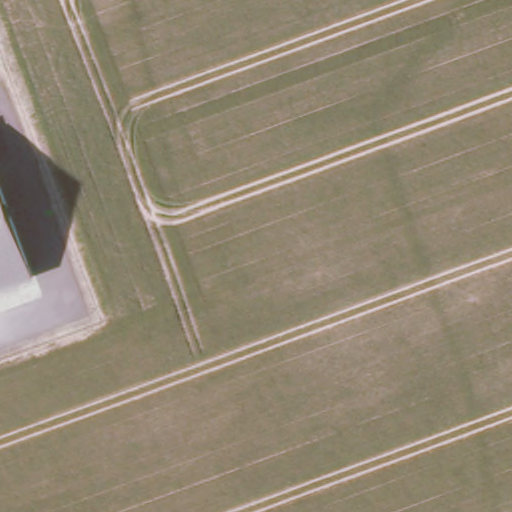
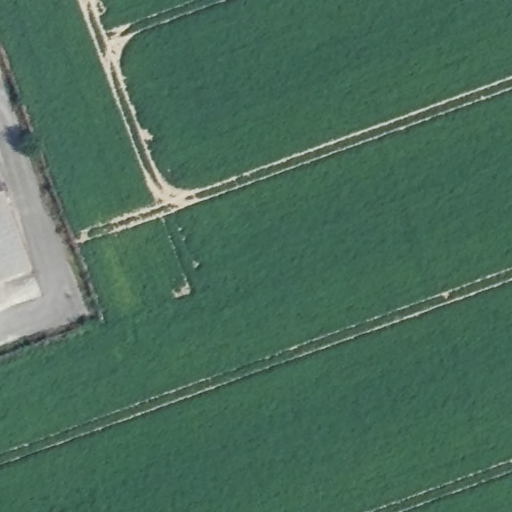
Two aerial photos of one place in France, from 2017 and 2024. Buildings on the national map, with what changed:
unchanged [(0,289),(0,182),(35,276),(0,289)]

